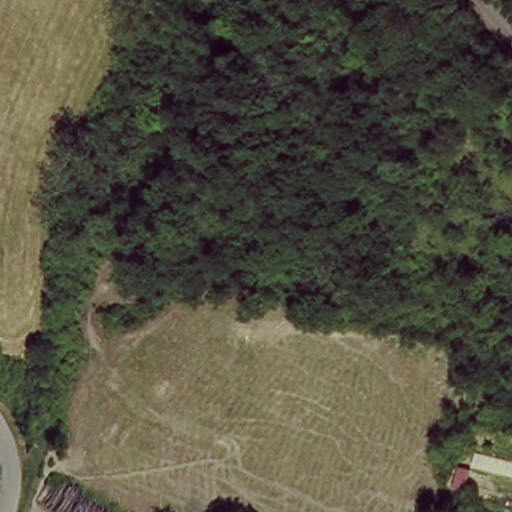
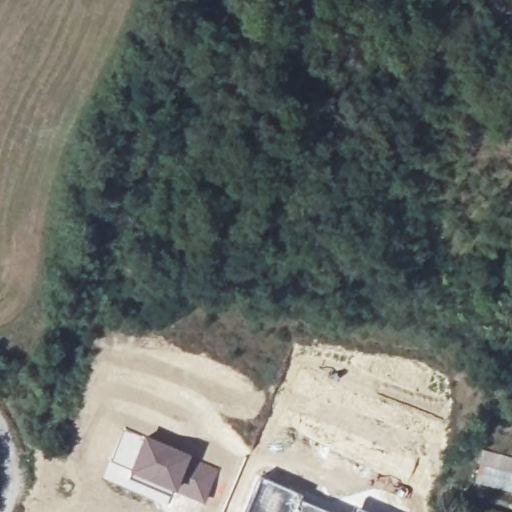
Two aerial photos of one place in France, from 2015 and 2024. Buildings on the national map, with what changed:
new [(220,468),(205,505),(176,492),(161,487),(155,497),(103,477),(109,462),(124,429),(144,436),(178,448),(220,468)]
new [(259,475),(303,495),(295,512),(243,512),(259,475)]
new [(303,495),(324,506),(328,495),(350,502),(371,512),(295,512),(303,495)]

